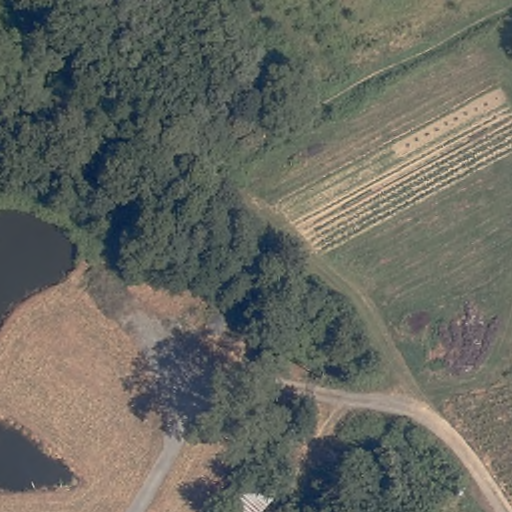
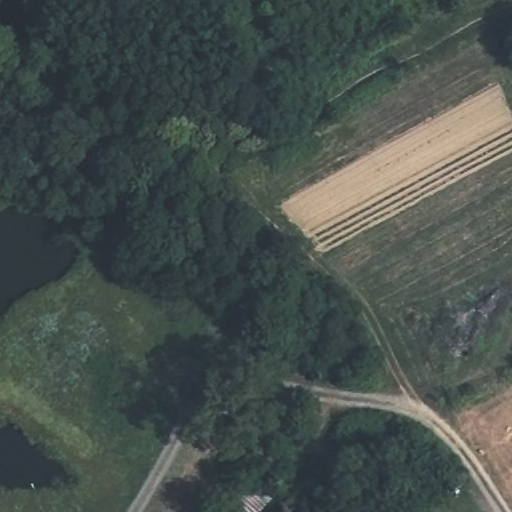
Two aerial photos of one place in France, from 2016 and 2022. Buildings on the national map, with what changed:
unchanged [(260,512),(224,512),(223,512),(248,480),(269,502),(260,512)]

